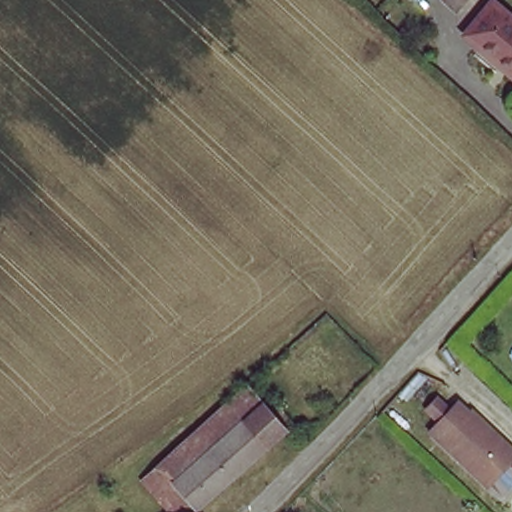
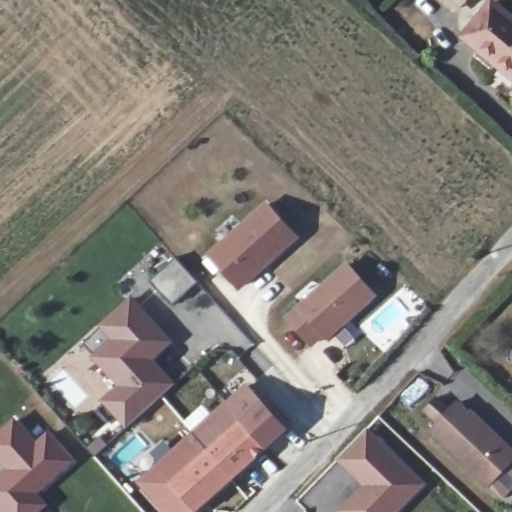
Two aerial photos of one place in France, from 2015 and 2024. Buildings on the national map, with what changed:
unchanged [(495,5),(512,18),(512,74),(468,38),(495,5)]
new [(266,204),(296,237),(239,287),(209,254),(266,204)]
new [(347,264),(373,294),(326,336),(324,334),(310,345),(287,319),(347,264)]
new [(114,338),(101,324),(131,298),(169,340),(148,359),(171,383),(127,424),(102,399),(119,384),(93,356),(114,338)]
unchanged [(179,479),(164,463),(177,452),(240,396),(254,383),(267,398),(179,479)]
unchanged [(428,408),(439,396),(453,409),(460,401),(473,412),(475,410),(512,447),(512,462),(490,484),(434,430),(442,421),(428,408)]
unchanged [(276,408),(290,424),(201,504),(179,479),(267,398),(276,408)]
new [(0,466),(0,428),(15,415),(36,438),(47,428),(77,461),(40,493),(49,504),(40,512),(0,512),(0,468),(1,468),(0,466)]
new [(336,511),(362,485),(336,459),(368,427),(425,484),(398,512),(337,512),(336,511)]
unchanged [(201,504),(193,512),(177,512),(147,478),(164,463),(179,479),(201,504)]

